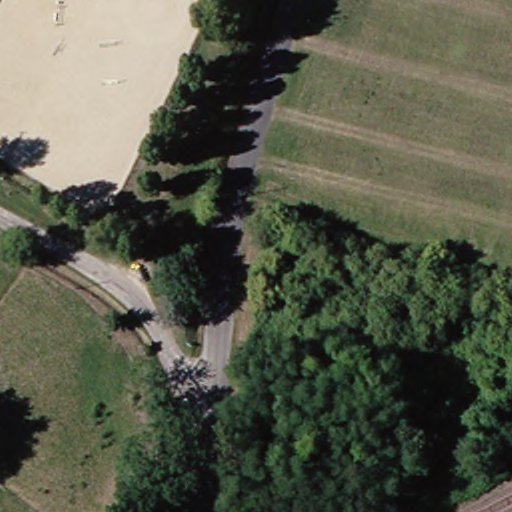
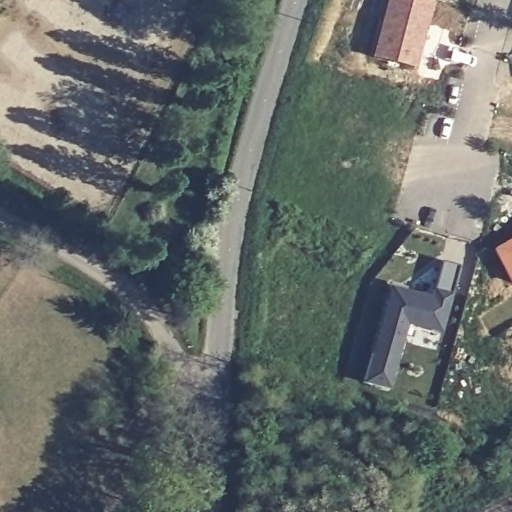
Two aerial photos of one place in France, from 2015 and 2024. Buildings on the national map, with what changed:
new [(372,57),(386,0),(432,0),(414,67),(372,57)]
new [(510,285),(491,248),(512,236),(512,284),(510,285)]
new [(438,331),(405,322),(388,386),(365,380),(391,285),(431,296),(441,261),(456,265),(438,331)]

